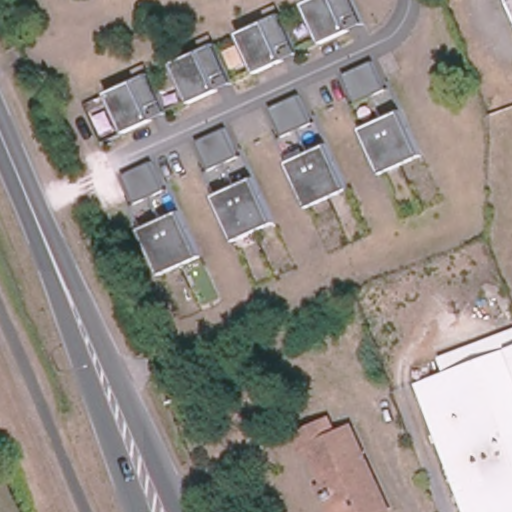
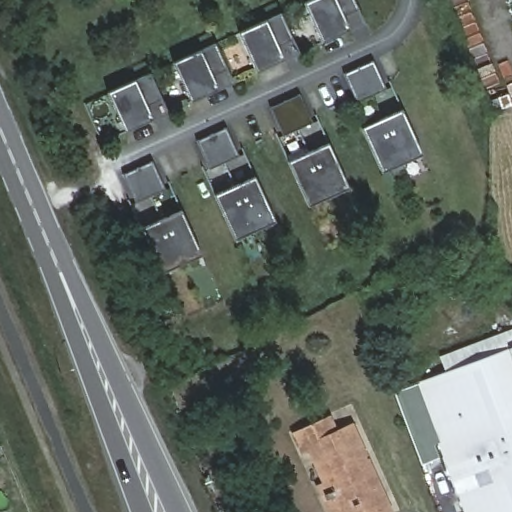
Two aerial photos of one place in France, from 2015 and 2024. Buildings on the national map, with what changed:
unchanged [(300,0),(302,0),(352,0),(361,22),(317,40),(300,0)]
unchanged [(238,28),(282,10),(299,50),(255,68),(238,28)]
unchanged [(172,61),(215,43),(232,83),(188,101),(172,61)]
unchanged [(501,110),(489,114),(467,55),(479,50),(501,110)]
unchanged [(346,71),(376,59),(388,88),(358,101),(346,71)]
unchanged [(105,94),(149,76),(165,116),(122,134),(105,94)]
unchanged [(271,106),(301,94),(313,123),(283,136),(271,106)]
unchanged [(360,126),(404,109),(422,156),(379,173),(360,126)]
unchanged [(196,141),(226,129),(238,159),(208,171),(196,141)]
unchanged [(286,156),(329,139),(348,186),(304,203),(286,156)]
unchanged [(121,171),(151,159),(163,189),(133,201),(121,171)]
unchanged [(211,191),(254,174),(273,221),(230,238),(211,191)]
unchanged [(136,226),(179,209),(198,256),(155,273),(136,226)]
unchanged [(512,349),(512,512),(467,512),(418,384),(512,349)]
unchanged [(333,512),(325,495),(322,488),(319,482),(326,479),(312,448),(309,442),(303,445),(295,429),(329,413),(336,429),(351,422),(386,498),(390,505),(375,512),(333,512)]

